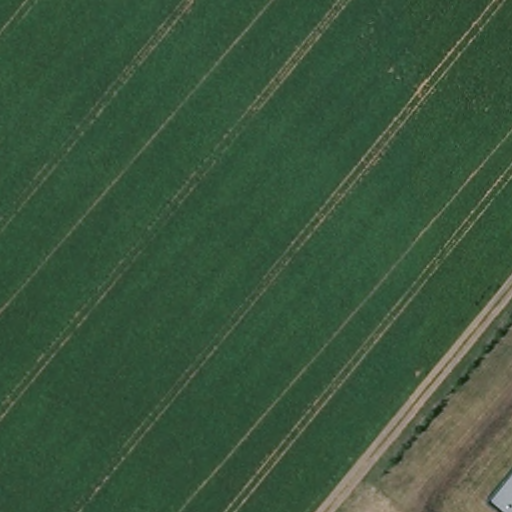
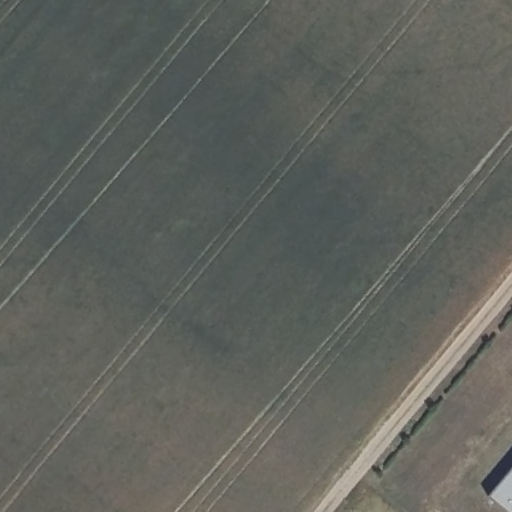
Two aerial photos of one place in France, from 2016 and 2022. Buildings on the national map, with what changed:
unchanged [(490,494),(512,468),(512,512),(510,512),(490,494)]

